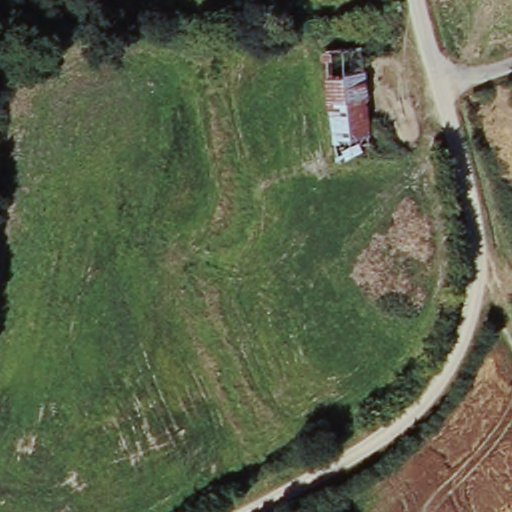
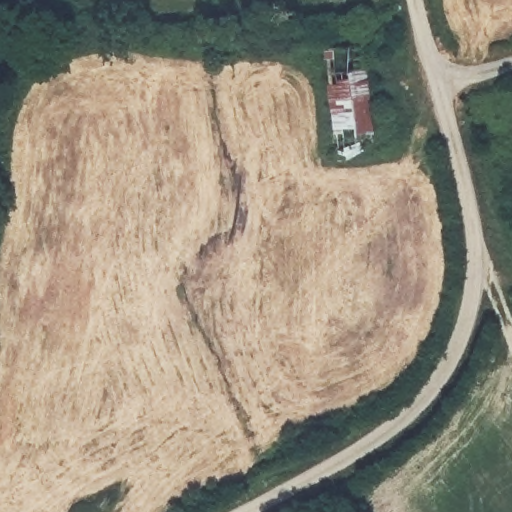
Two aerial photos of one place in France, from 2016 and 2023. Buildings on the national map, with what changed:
unchanged [(320,51),(316,34),(335,32),(352,30),(355,46),(371,162),(337,167),(320,51)]

